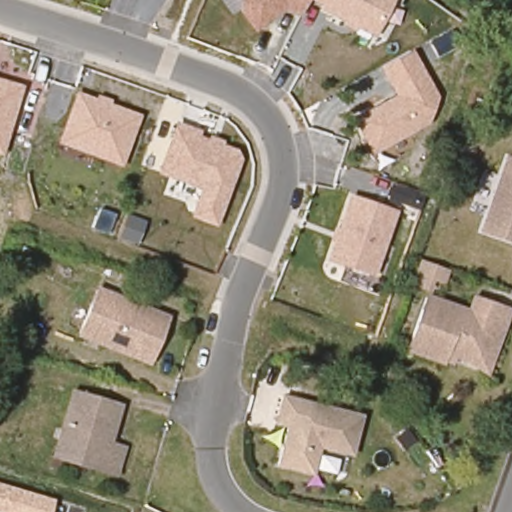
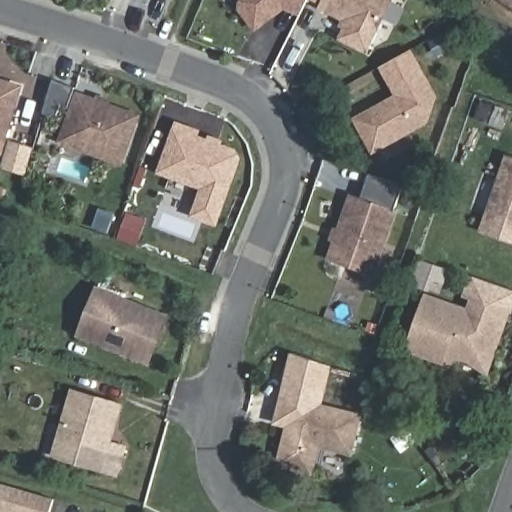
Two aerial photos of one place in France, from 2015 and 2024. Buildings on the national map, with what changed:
unchanged [(299,18),(282,12),(254,34),(236,10),(239,0),(308,0),(299,18)]
unchanged [(374,38),(319,12),(322,5),(312,0),(393,0),(374,38)]
unchanged [(438,95),(428,124),(372,156),(352,117),(395,95),(380,67),(412,49),(438,95)]
unchanged [(24,84),(5,154),(0,153),(0,78),(24,84)]
unchanged [(94,97),(96,94),(112,99),(110,103),(141,114),(123,167),(56,144),(75,92),(94,97)]
unchanged [(202,128),(199,136),(207,138),(209,135),(224,139),(222,145),(236,147),(243,158),(219,227),(191,218),(200,189),(157,174),(177,121),(202,128)]
unchanged [(512,157),(512,238),(475,226),(500,152),(512,157)]
unchanged [(326,259),(350,194),(398,210),(375,276),(326,259)]
unchanged [(433,275),(407,266),(412,253),(437,262),(433,275)]
unchanged [(77,336),(90,289),(162,308),(149,355),(77,336)]
unchanged [(402,346),(420,293),(462,307),(467,293),(502,305),(497,321),(480,372),(445,360),(437,357),(402,346)]
new [(322,403),(280,393),(291,352),(332,366),(322,403)]
unchanged [(51,448),(71,392),(117,408),(104,446),(119,451),(110,477),(77,465),(49,455),(51,448)]
unchanged [(363,413),(353,456),(322,448),(315,475),(275,466),(284,427),(272,425),(280,393),(363,413)]
unchanged [(51,512),(0,512),(0,483),(54,499),(51,512)]

